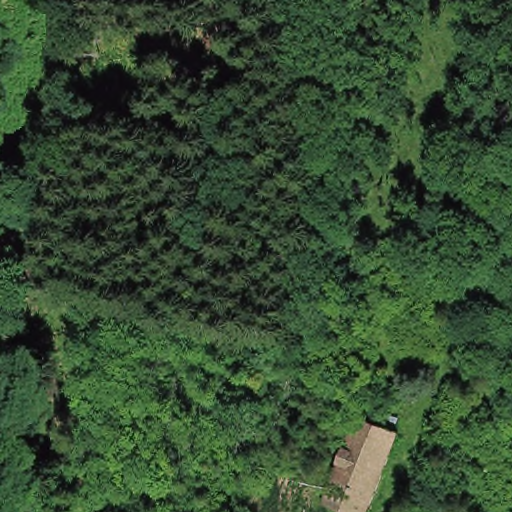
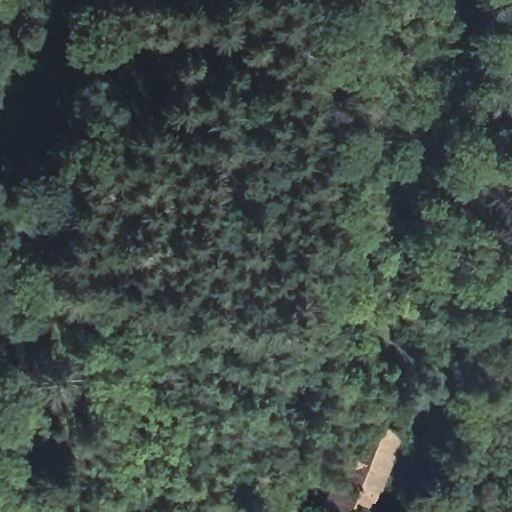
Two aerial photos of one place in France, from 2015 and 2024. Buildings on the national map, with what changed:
unchanged [(344,512),(323,503),(360,418),(396,433),(364,512),(344,512)]

